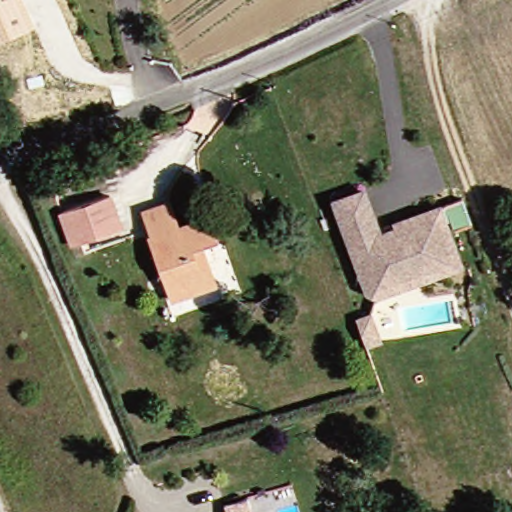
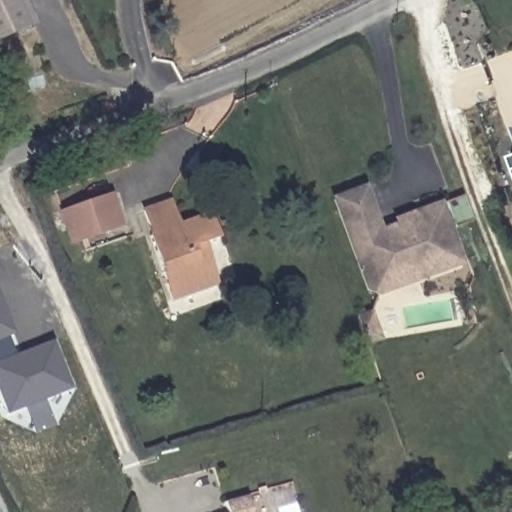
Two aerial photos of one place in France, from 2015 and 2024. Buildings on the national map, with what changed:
new [(0,43),(0,0),(24,0),(35,25),(0,43)]
new [(510,153),(512,152),(512,157),(510,153)]
unchanged [(360,182),(375,224),(386,220),(385,215),(433,198),(458,264),(360,298),(321,193),(360,182)]
unchanged [(119,226),(68,243),(57,212),(108,195),(119,226)]
unchanged [(135,207),(165,198),(174,223),(202,214),(210,239),(195,244),(208,285),(161,298),(135,207)]
new [(13,356),(51,341),(70,390),(5,416),(0,403),(0,302),(12,335),(6,338),(13,356)]
unchanged [(380,339),(356,346),(345,315),(366,307),(380,339)]
unchanged [(217,497),(240,490),(248,512),(223,512),(217,497)]

